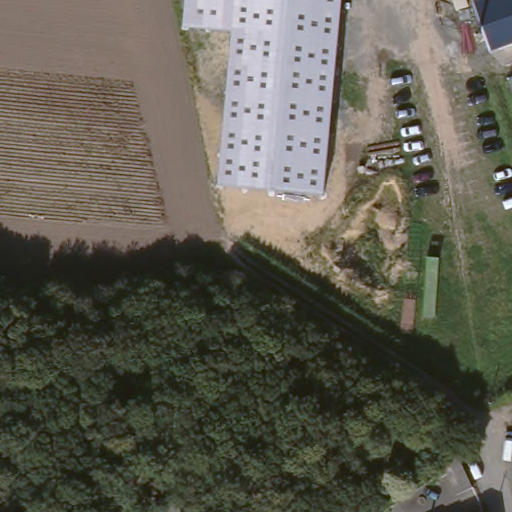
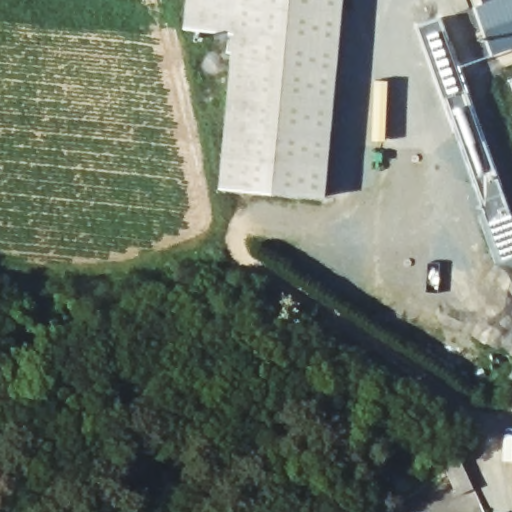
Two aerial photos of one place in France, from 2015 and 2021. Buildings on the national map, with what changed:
unchanged [(234,33),(184,28),(186,0),(343,0),(326,194),(221,187),(234,33)]
new [(472,0),(483,0),(474,3),(472,0)]
unchanged [(474,3),(483,0),(512,0),(512,45),(491,53),(474,3)]
new [(416,25),(441,16),(512,216),(512,256),(501,260),(416,25)]
unchanged [(508,83),(512,82),(512,96),(508,83)]
unchanged [(472,490),(457,497),(443,471),(457,457),(472,490)]

